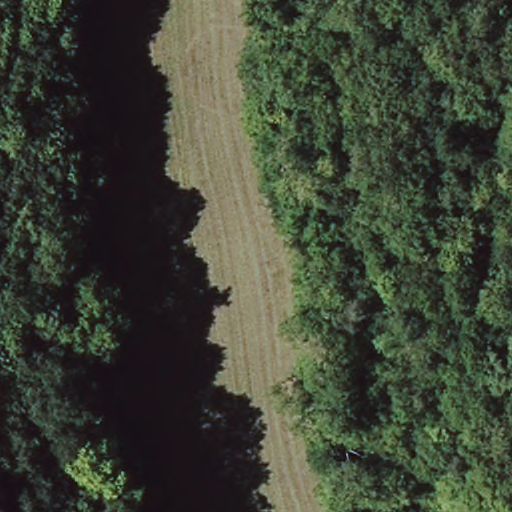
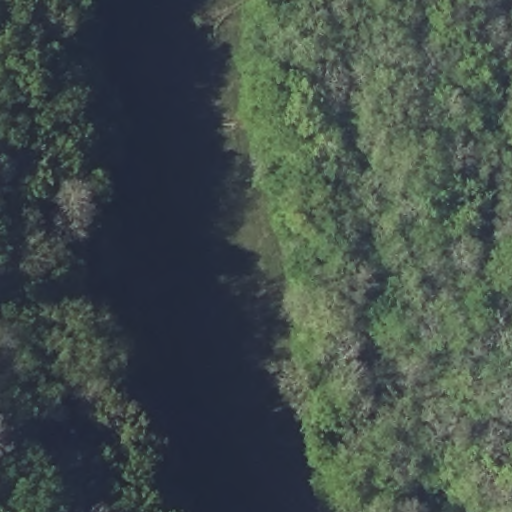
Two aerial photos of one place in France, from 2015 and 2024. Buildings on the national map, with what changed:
[]

